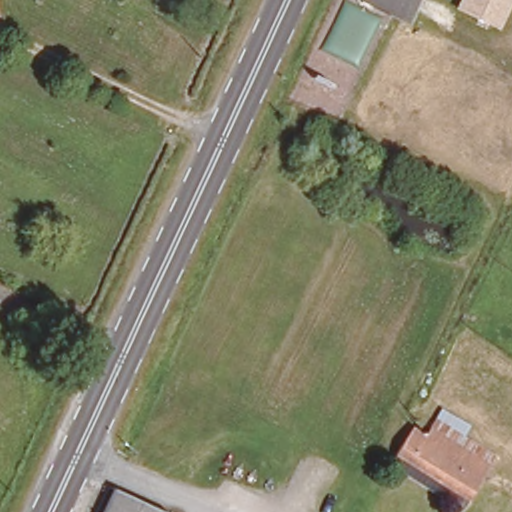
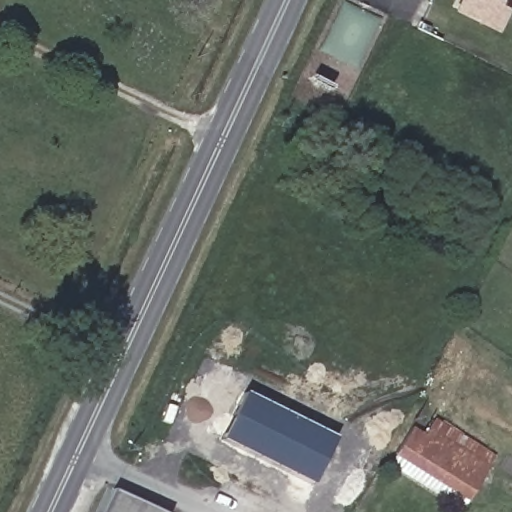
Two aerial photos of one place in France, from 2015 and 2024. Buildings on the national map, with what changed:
unchanged [(458,11),(463,0),(512,0),(512,10),(503,31),(458,11)]
new [(245,392),(336,437),(312,485),(221,439),(245,392)]
unchanged [(483,485),(415,446),(430,418),(497,460),(483,485)]
unchanged [(474,501),(407,462),(415,446),(483,485),(474,501)]
unchanged [(168,512),(105,512),(117,487),(168,512)]

